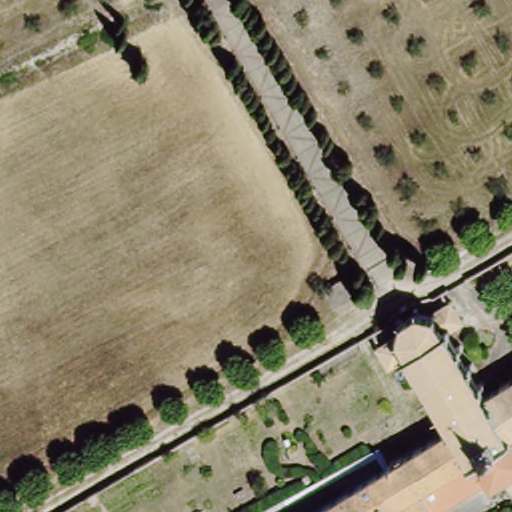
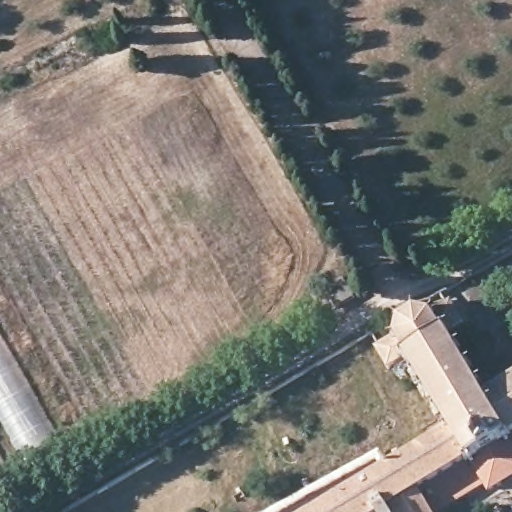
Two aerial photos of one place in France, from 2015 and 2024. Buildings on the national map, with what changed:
unchanged [(356,296),(336,308),(324,289),(344,277),(356,296)]
unchanged [(432,321),(435,316),(436,317),(452,307),(463,326),(445,337),(484,401),(512,437),(512,445),(469,470),(452,435),(407,361),(402,365),(404,370),(399,373),(396,368),(389,372),(377,352),(393,343),(393,342),(399,342),(400,328),(419,316),(432,321)]
new [(0,483),(0,337),(61,449),(0,483)]
unchanged [(484,401),(512,384),(512,437),(484,401)]
unchanged [(452,435),(469,470),(512,445),(512,483),(490,497),(485,488),(447,512),(326,512),(452,435)]

